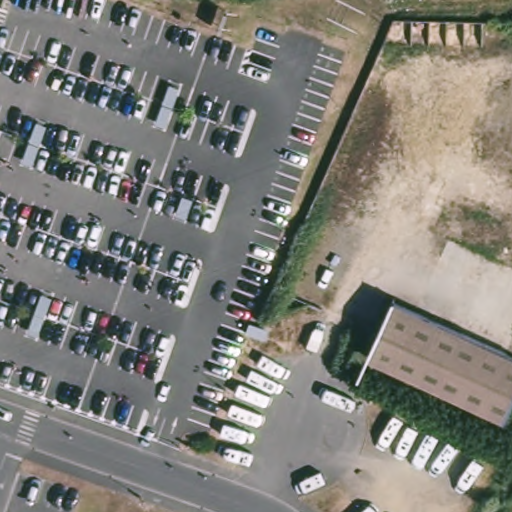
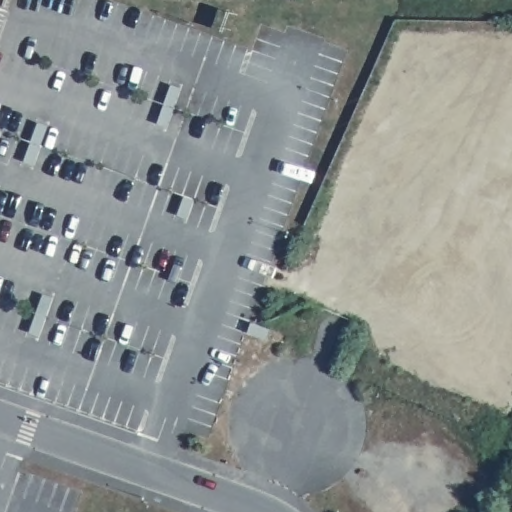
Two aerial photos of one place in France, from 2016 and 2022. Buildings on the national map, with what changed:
demolished [(512,398),(499,425),(367,361),(380,333),(376,331),(390,304),(512,363),(512,398)]

